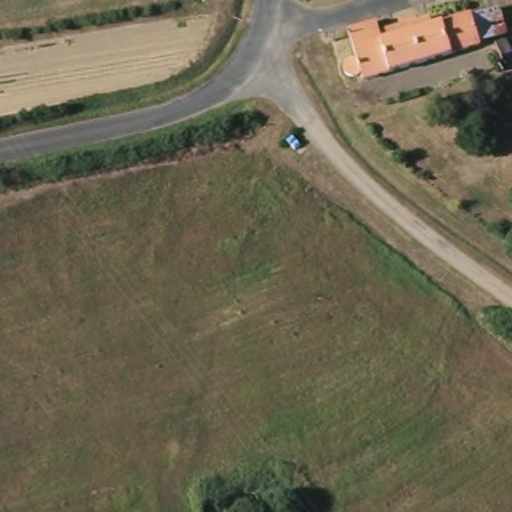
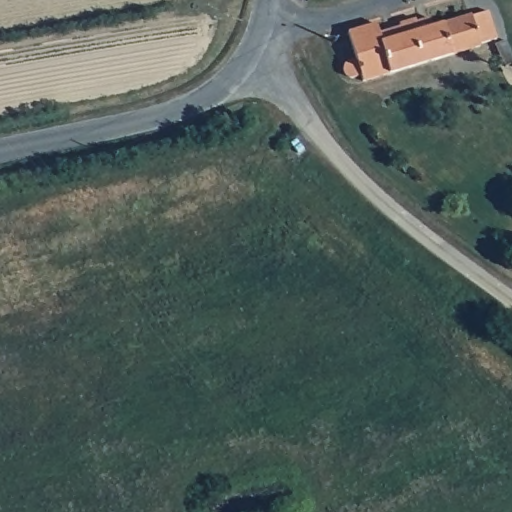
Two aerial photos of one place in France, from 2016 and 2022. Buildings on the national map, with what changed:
unchanged [(369,85),(365,75),(348,81),(341,63),(359,56),(352,37),(380,26),(385,42),(406,35),(402,23),(417,17),(421,29),(455,16),(485,5),(495,33),(465,44),(467,49),(369,85)]

